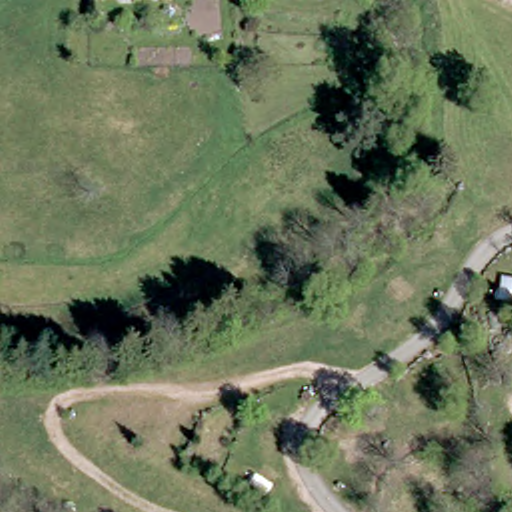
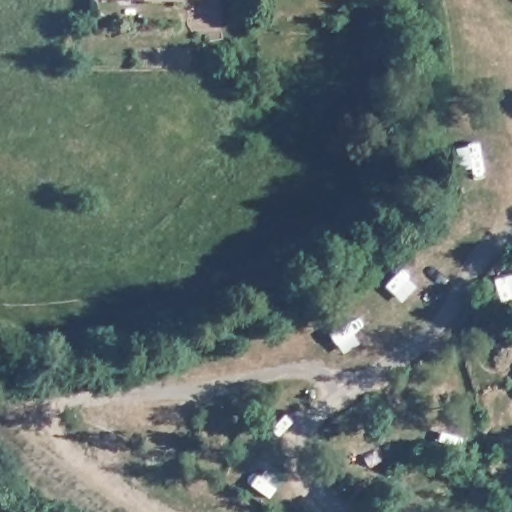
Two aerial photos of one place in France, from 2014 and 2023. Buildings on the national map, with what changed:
unchanged [(143,0),(143,5),(102,2),(102,0),(143,0)]
unchanged [(143,0),(181,0),(181,7),(143,5),(143,0)]

